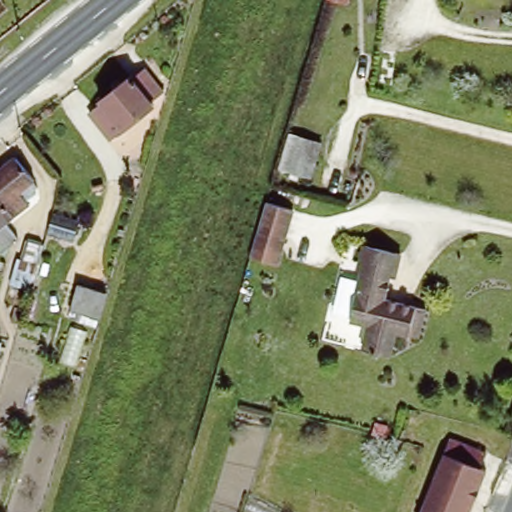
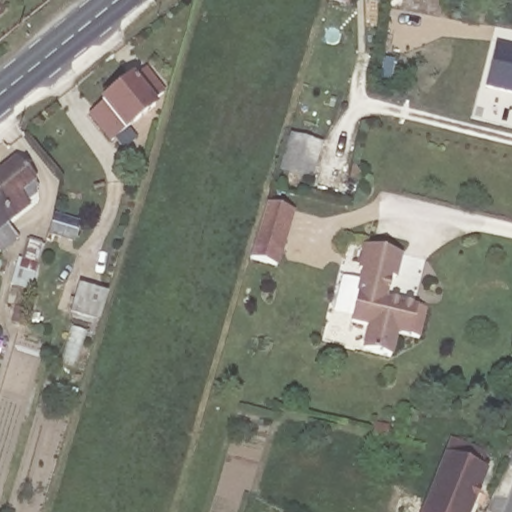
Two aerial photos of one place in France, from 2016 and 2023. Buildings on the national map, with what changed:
unchanged [(330,0),(351,0),(350,6),(330,0)]
new [(496,45),(512,49),(512,94),(485,87),(496,45)]
unchanged [(92,115),(104,107),(101,104),(132,80),(134,82),(147,72),(164,95),(152,104),(155,108),(113,142),(92,115)]
unchanged [(292,135),(324,145),(314,180),(282,171),(292,135)]
unchanged [(17,156),(36,180),(34,181),(37,185),(35,188),(37,191),(24,202),(27,206),(9,220),(0,208),(0,170),(12,160),(17,156)]
unchanged [(295,214),(279,271),(249,261),(266,204),(295,214)]
unchanged [(1,226),(14,243),(0,254),(0,208),(9,220),(1,226)]
unchanged [(55,220),(80,226),(75,242),(51,235),(55,220)]
unchanged [(367,327),(348,321),(361,270),(357,269),(362,247),(399,256),(392,279),(389,278),(382,300),(424,310),(416,338),(394,334),(387,358),(361,351),(367,327)]
unchanged [(82,288),(110,295),(101,324),(74,316),(82,288)]
unchanged [(377,426),(390,429),(387,440),(375,437),(377,426)]
unchanged [(451,441),(486,454),(481,469),(487,472),(472,512),(423,512),(451,441)]

